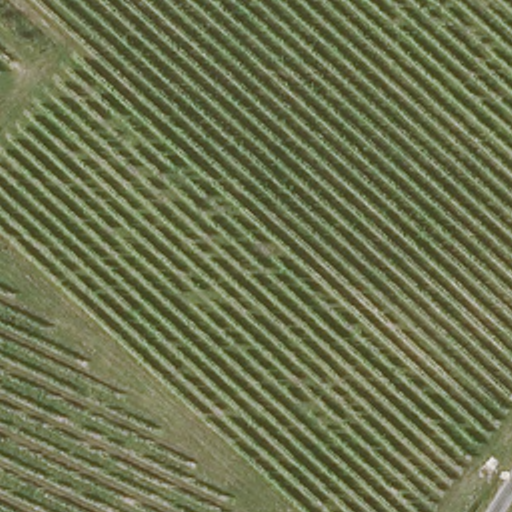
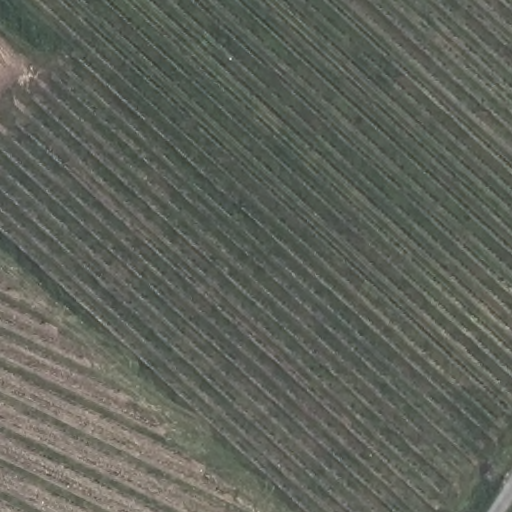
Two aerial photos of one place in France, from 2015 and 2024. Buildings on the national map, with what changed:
[]

